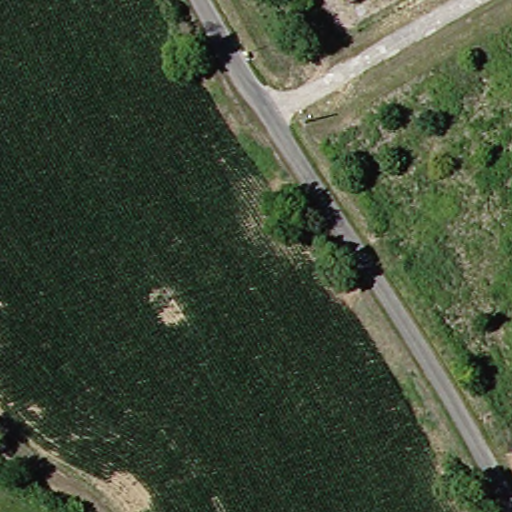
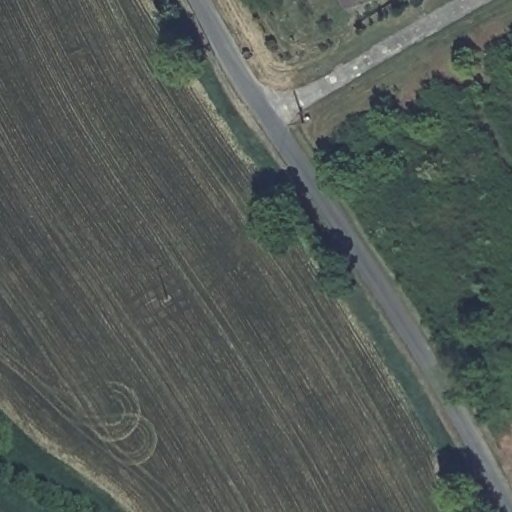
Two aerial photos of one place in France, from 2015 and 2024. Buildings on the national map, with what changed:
unchanged [(344,0),(358,0),(347,5),(344,0)]

